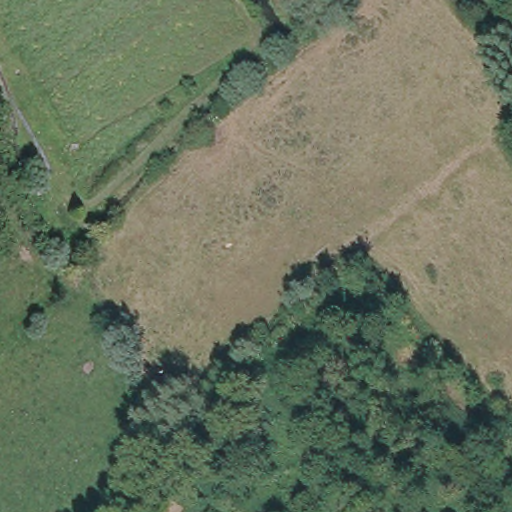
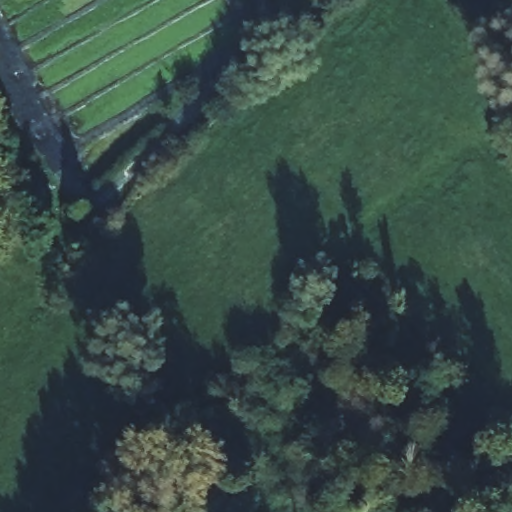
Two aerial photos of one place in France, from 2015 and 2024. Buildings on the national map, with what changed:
[]

